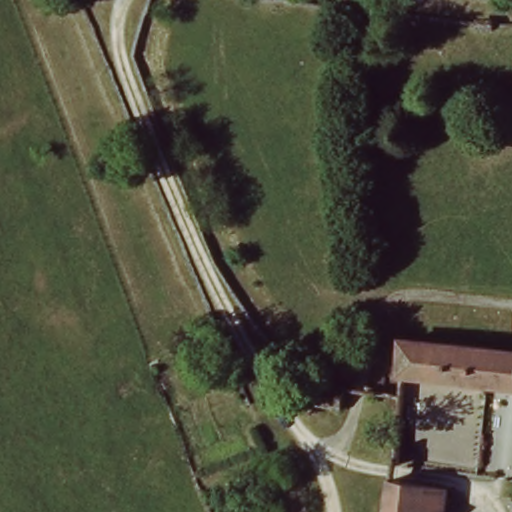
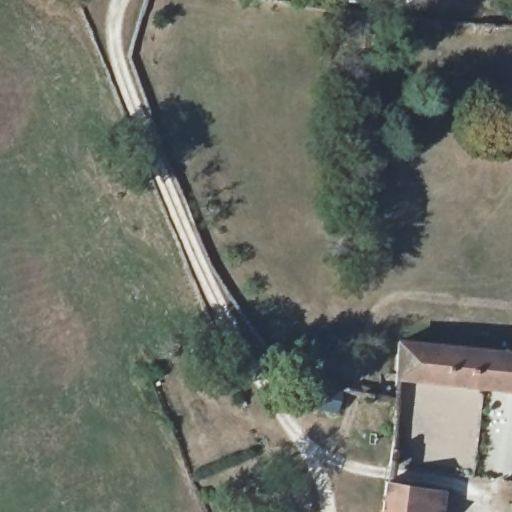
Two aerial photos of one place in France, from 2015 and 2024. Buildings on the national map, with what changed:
unchanged [(416,344),(512,352),(512,385),(413,376),(416,344)]
unchanged [(440,489),(438,512),(382,512),(386,481),(440,489)]

